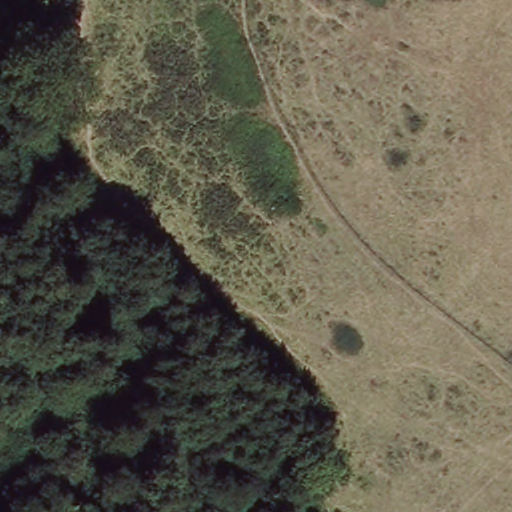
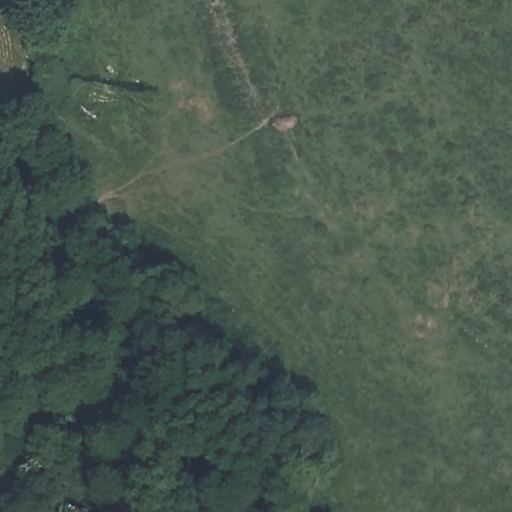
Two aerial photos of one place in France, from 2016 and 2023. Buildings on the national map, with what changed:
[]

